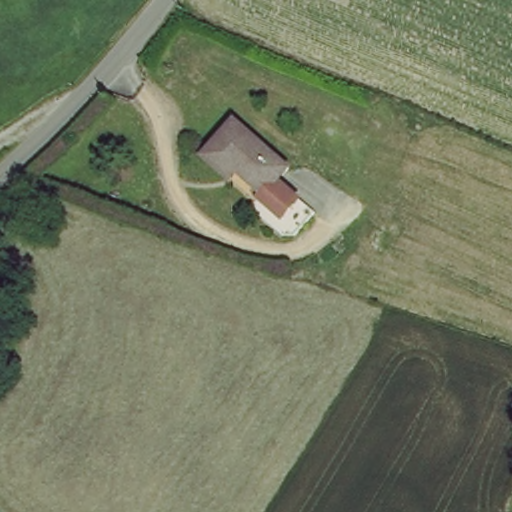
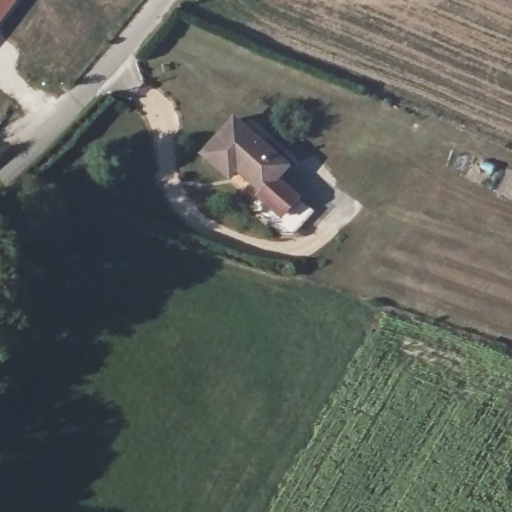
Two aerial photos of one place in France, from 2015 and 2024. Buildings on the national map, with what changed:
new [(16,0),(0,21),(0,0),(16,0)]
unchanged [(237,175),(231,184),(204,160),(234,125),(291,172),(267,200),(237,175)]

